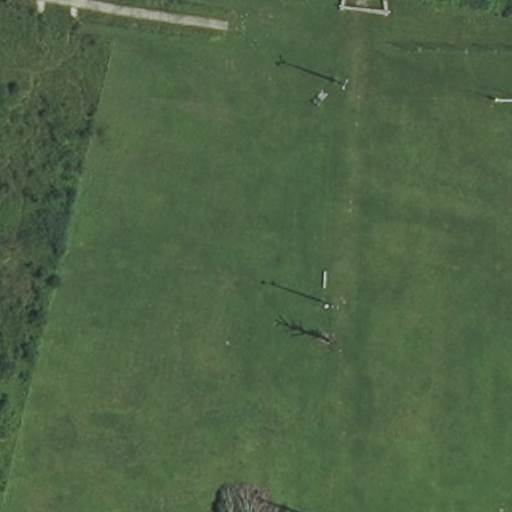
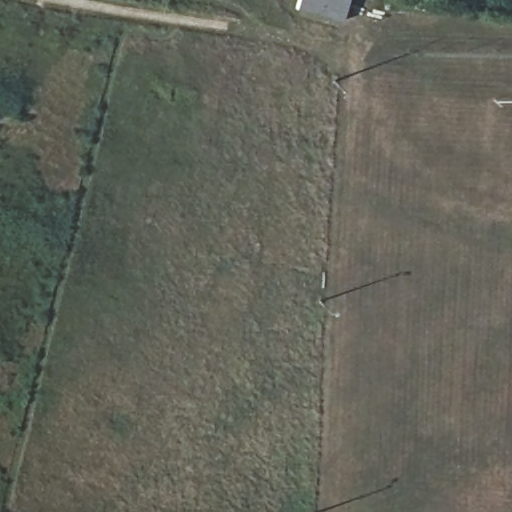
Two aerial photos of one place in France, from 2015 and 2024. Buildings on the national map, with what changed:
new [(301,0),(352,0),(344,25),(298,11),(301,0)]

